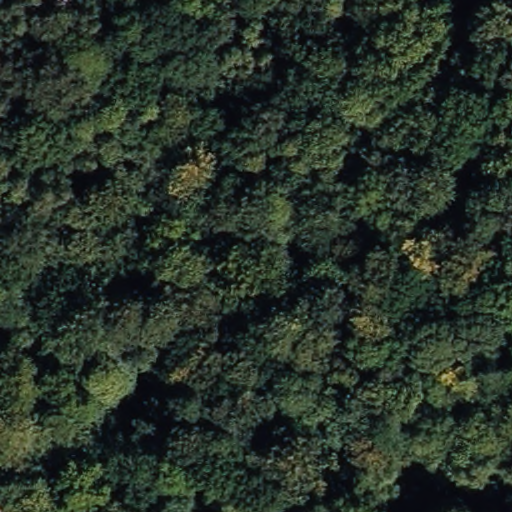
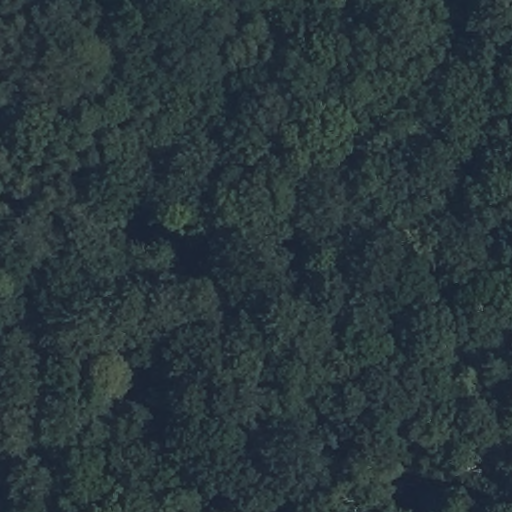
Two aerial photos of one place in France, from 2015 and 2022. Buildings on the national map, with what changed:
unchanged [(175,469),(137,512),(127,512),(112,499),(157,444),(175,469)]

